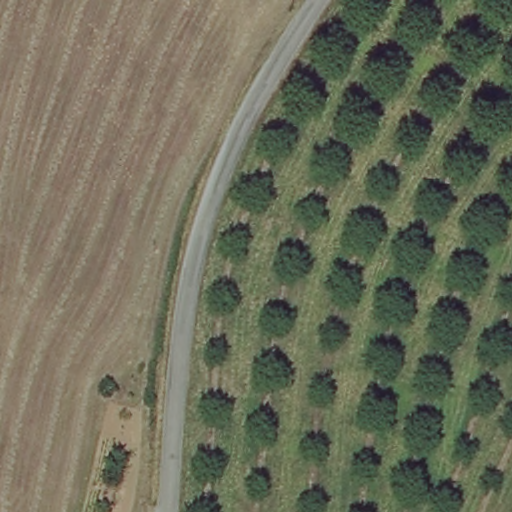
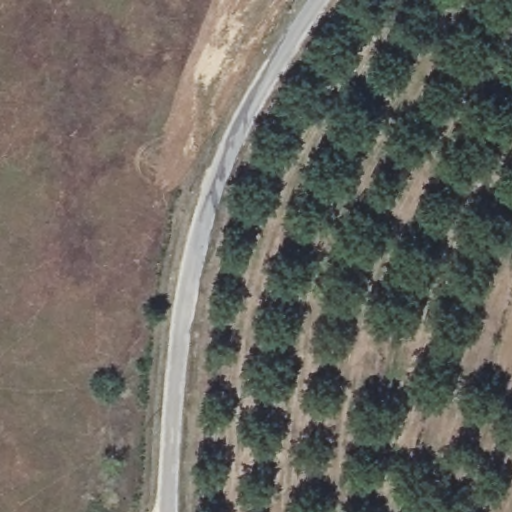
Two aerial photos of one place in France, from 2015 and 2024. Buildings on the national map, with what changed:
[]

